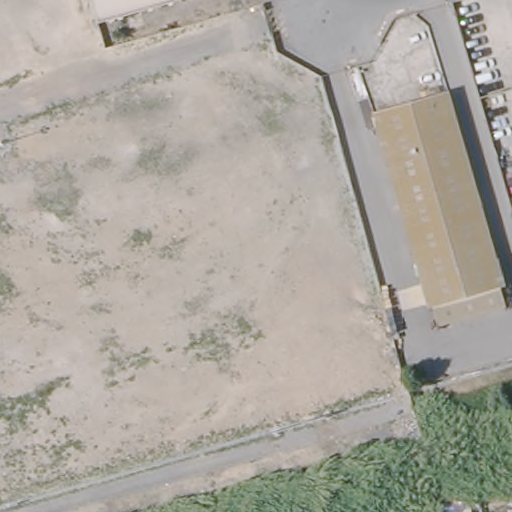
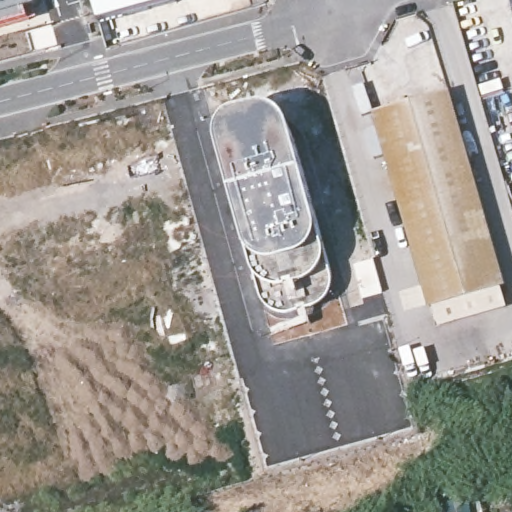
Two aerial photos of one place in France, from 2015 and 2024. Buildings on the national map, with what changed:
new [(28,10),(31,19),(0,28),(0,0),(42,0),(43,2),(28,10)]
unchanged [(191,0),(99,26),(91,0),(191,0)]
unchanged [(377,114),(451,94),(505,292),(497,294),(502,315),(442,330),(437,311),(430,312),(377,114)]
new [(218,127),(227,116),(236,111),(263,105),(277,108),(287,117),(294,135),(334,277),(333,288),(329,298),(321,305),(308,312),(289,317),(285,318),(278,317),(270,312),(262,300),(230,191),(218,145),(217,133),(218,127)]
unchanged [(470,501),(471,512),(434,512),(434,509),(470,501)]

